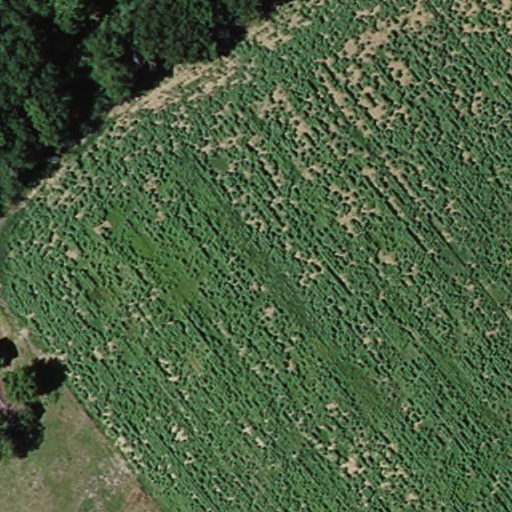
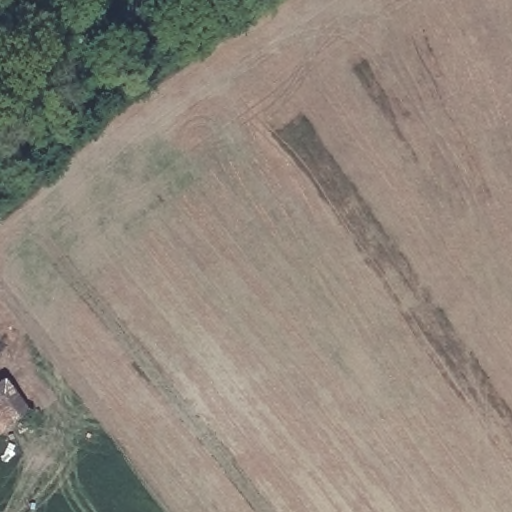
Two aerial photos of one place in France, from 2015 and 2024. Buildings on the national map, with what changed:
unchanged [(0,428),(0,373),(28,405),(0,428)]

